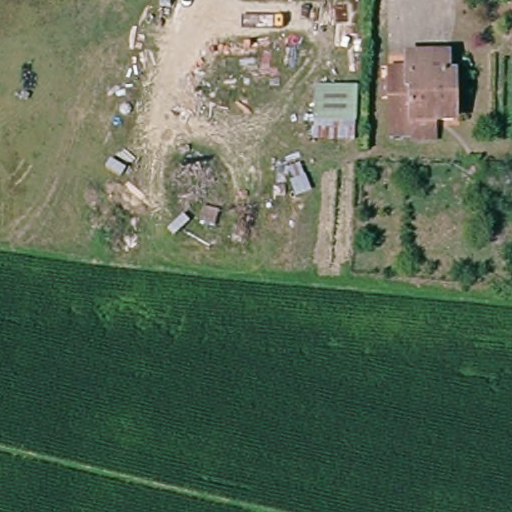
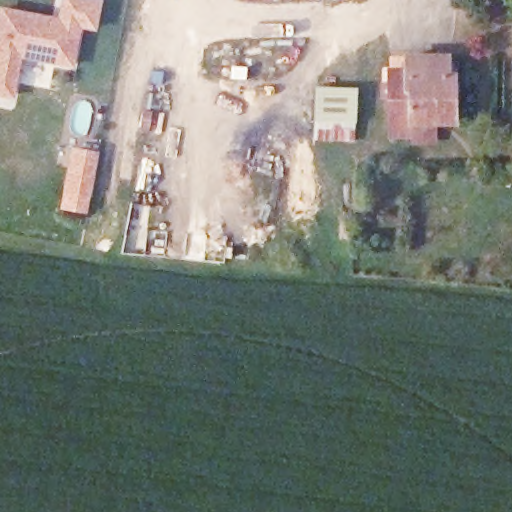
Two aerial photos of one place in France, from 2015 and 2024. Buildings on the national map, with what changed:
new [(82,28),(74,68),(21,58),(13,99),(0,96),(0,9),(0,7),(58,18),(62,0),(100,0),(102,1),(96,31),(82,28)]
unchanged [(453,67),(455,109),(415,111),(416,119),(394,120),(391,68),(412,67),(411,51),(425,50),(426,68),(453,67)]
unchanged [(360,89),(358,124),(343,124),(341,140),(317,139),(318,124),(318,87),(360,89)]
new [(71,146),(97,152),(89,197),(62,192),(71,146)]

